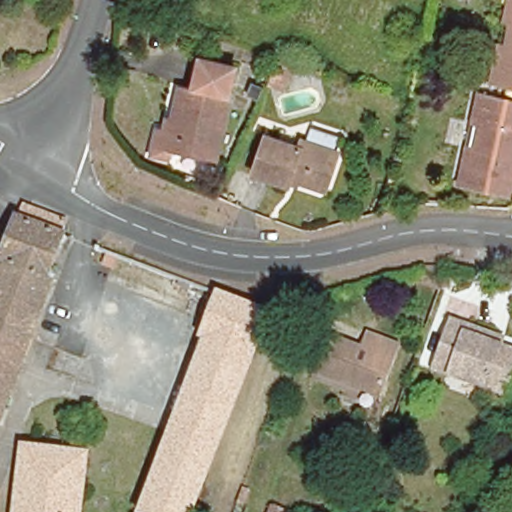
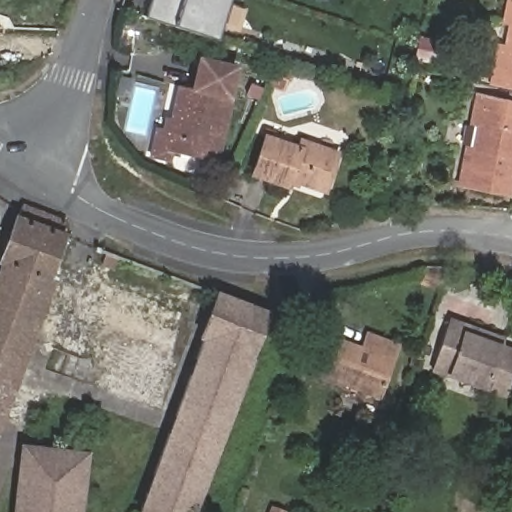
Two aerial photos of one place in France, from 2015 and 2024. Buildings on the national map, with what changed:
new [(175,25),(146,16),(152,0),(229,0),(217,38),(175,25)]
unchanged [(505,80),(495,77),(488,76),(504,0),(512,0),(512,81),(505,80)]
unchanged [(215,165),(160,154),(173,93),(190,96),(197,61),(235,70),(215,165)]
unchanged [(285,94),(270,88),(278,68),(293,74),(285,94)]
unchanged [(502,175),(500,185),(499,189),(457,179),(448,177),(462,115),(468,89),(477,91),(495,95),(512,99),(512,129),(507,154),(509,155),(512,156),(512,173),(512,175),(503,173),(502,175)]
unchanged [(326,183),(292,171),(289,179),(253,166),(266,130),(300,143),(303,135),(338,148),(326,183)]
unchanged [(61,230),(59,237),(44,277),(49,280),(0,411),(0,268),(1,267),(0,267),(0,260),(21,209),(63,226),(61,230)]
unchanged [(271,313),(207,480),(194,512),(140,512),(206,339),(203,338),(221,293),(271,313)]
unchanged [(494,400),(421,375),(439,327),(470,338),(489,345),(487,352),(509,360),(494,400)]
unchanged [(335,397),(338,387),(308,377),(322,337),(352,348),(357,335),(385,345),(380,358),(366,397),(363,406),(335,397)]
unchanged [(24,446),(86,454),(79,512),(12,512),(24,446)]

